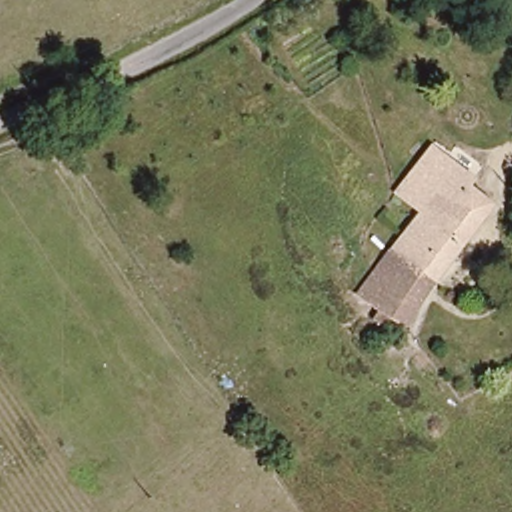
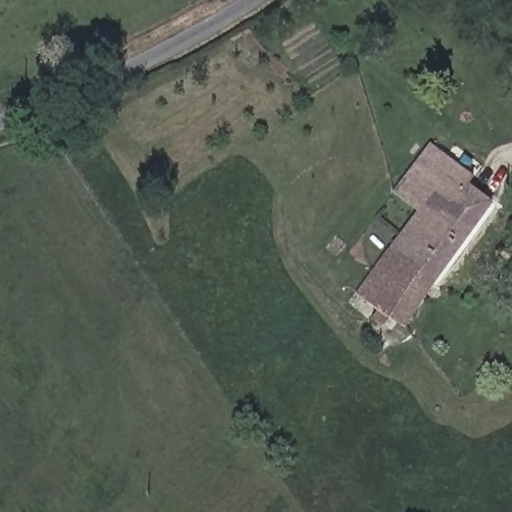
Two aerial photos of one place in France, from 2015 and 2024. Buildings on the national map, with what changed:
unchanged [(393,196),(426,150),(450,166),(417,213),(393,196)]
unchanged [(417,213),(450,166),(471,181),(465,191),(433,227),(420,216),(417,213)]
unchanged [(371,324),(375,317),(354,300),(367,283),(360,277),(366,268),(376,274),(420,216),(433,227),(465,191),(488,209),(426,292),(398,331),(387,323),(382,331),(371,324)]

